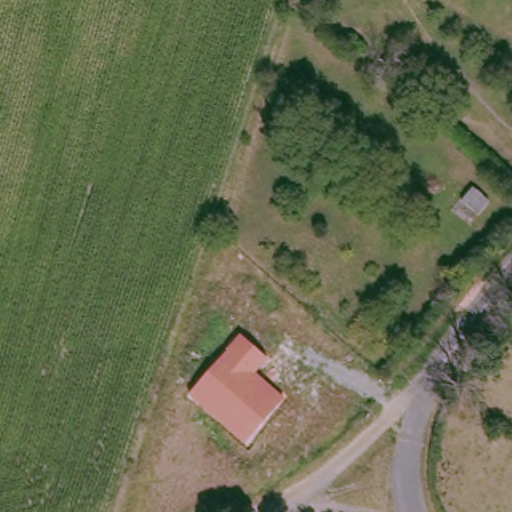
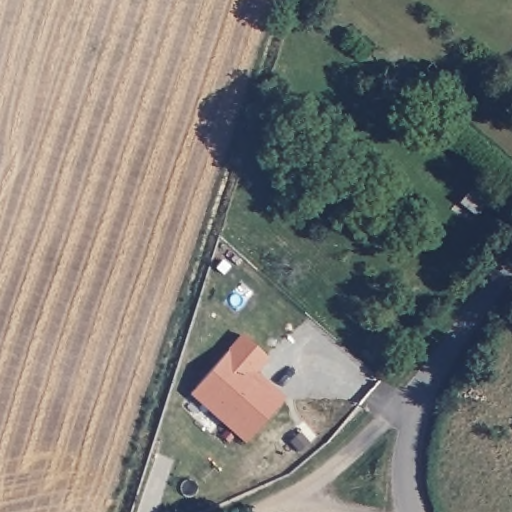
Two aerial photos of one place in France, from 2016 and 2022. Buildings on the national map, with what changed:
unchanged [(472,188),(490,202),(479,215),(462,201),(472,188)]
unchanged [(190,393),(240,334),(268,358),(256,372),(284,397),(244,443),(190,393)]

